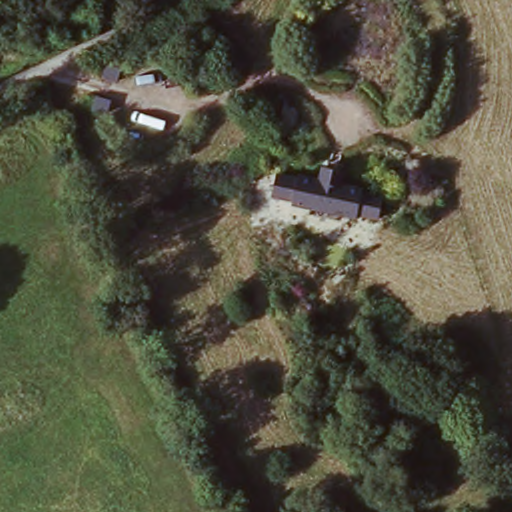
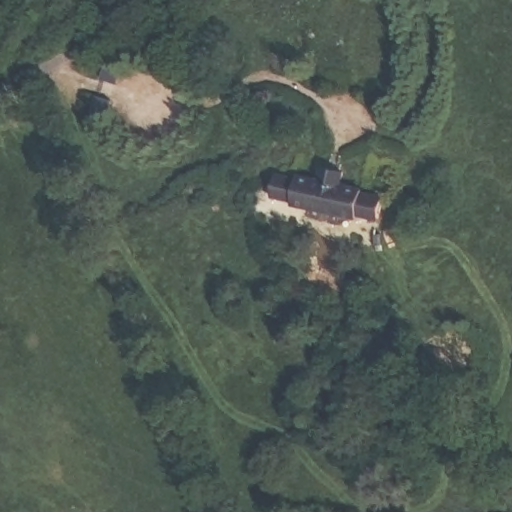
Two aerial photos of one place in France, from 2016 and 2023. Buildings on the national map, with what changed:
unchanged [(268,172),(290,179),(291,176),(313,182),(317,168),(337,174),(333,187),(355,194),(354,198),(373,203),(368,224),(348,218),(347,221),(283,203),(283,200),(263,193),(268,172)]

